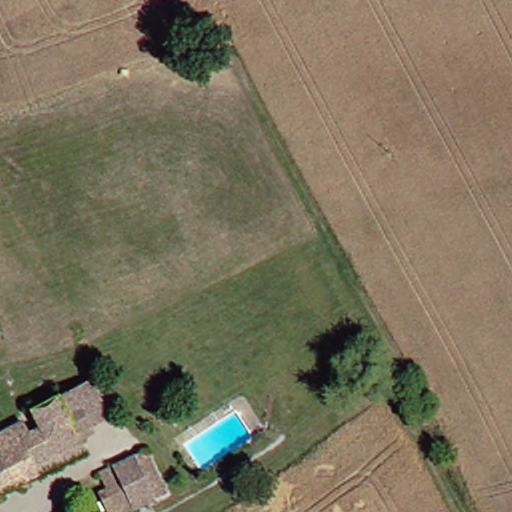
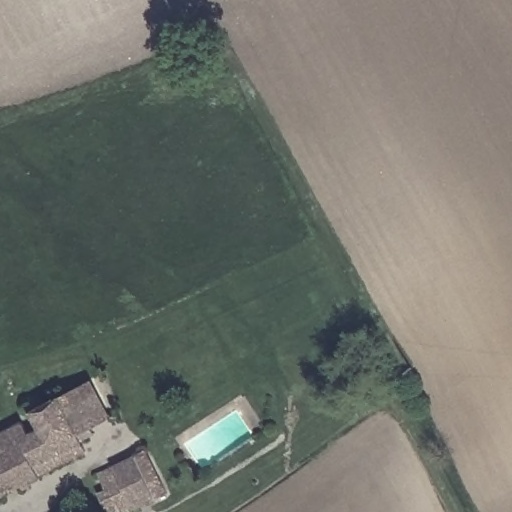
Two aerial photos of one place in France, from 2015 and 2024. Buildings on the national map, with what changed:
unchanged [(51,473),(0,496),(0,444),(28,430),(35,435),(44,432),(39,414),(95,383),(115,427),(86,443),(87,451),(51,473)]
unchanged [(168,498),(142,512),(115,512),(108,498),(119,491),(113,468),(145,454),(153,447),(167,471),(174,489),(167,493),(168,498)]

